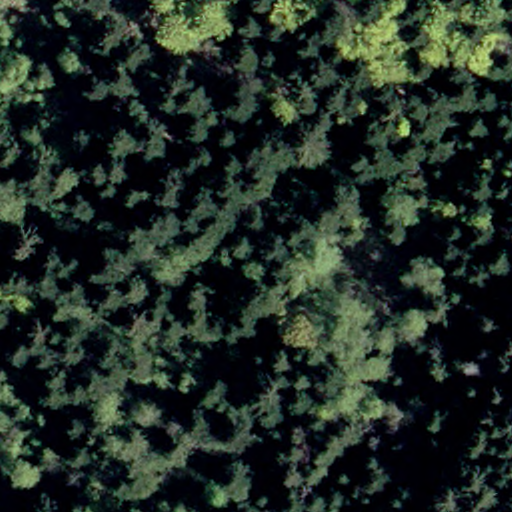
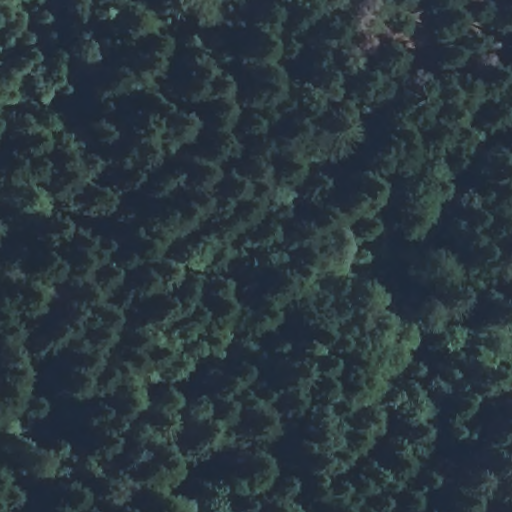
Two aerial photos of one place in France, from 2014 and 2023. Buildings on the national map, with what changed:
[]

